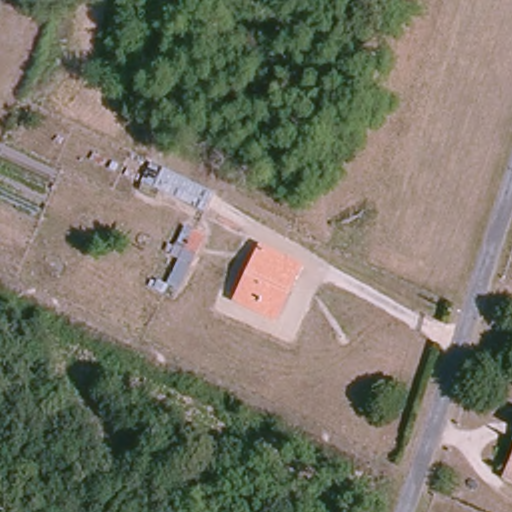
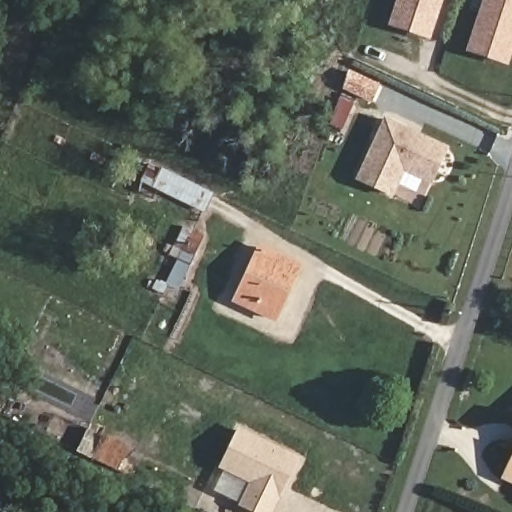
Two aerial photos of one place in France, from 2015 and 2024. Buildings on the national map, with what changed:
new [(404,0),(445,0),(434,34),(397,22),(404,0)]
new [(490,0),(512,0),(512,59),(512,60),(474,48),(490,0)]
new [(384,116),(448,146),(434,182),(404,171),(393,197),(356,180),(384,116)]
unchanged [(188,204),(195,184),(214,193),(206,210),(188,204)]
unchanged [(277,320),(236,303),(260,246),(302,264),(277,320)]
new [(219,468),(239,426),(301,456),(274,512),(252,512),(239,505),(248,481),(219,468)]
unchanged [(507,477),(512,464),(512,479),(507,477)]

